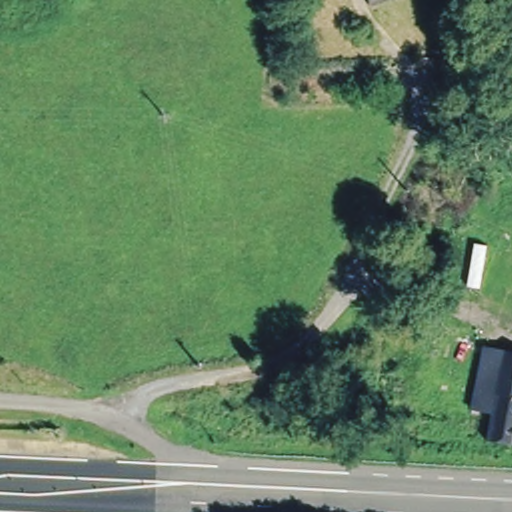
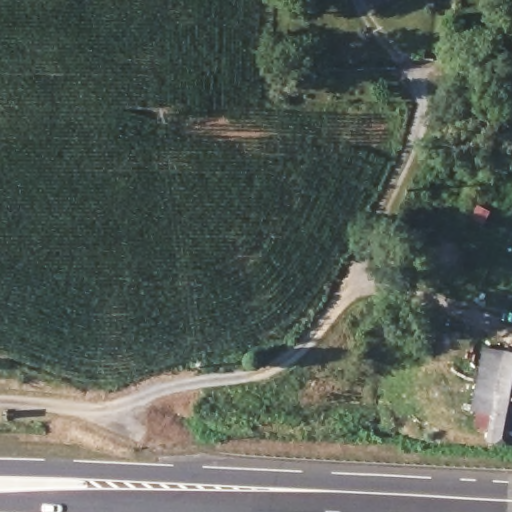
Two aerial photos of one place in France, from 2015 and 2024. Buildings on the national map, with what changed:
unchanged [(360,0),(394,0),(363,9),(360,0)]
unchanged [(466,390),(475,351),(512,357),(512,434),(510,445),(480,444),(485,414),(464,411),(466,390)]

